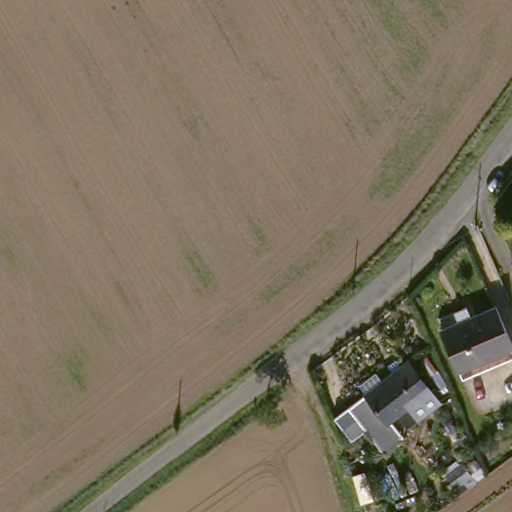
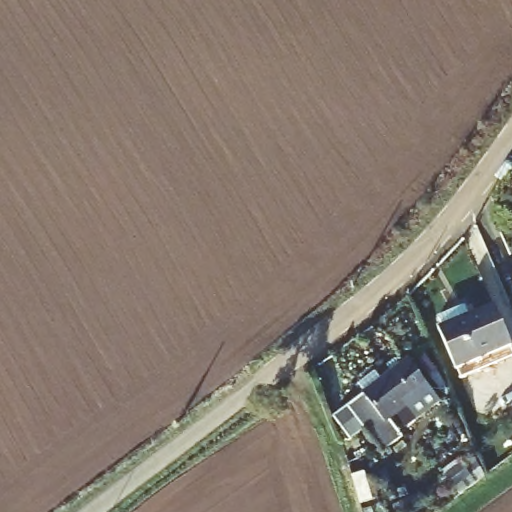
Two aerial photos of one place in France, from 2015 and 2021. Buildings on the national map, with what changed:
unchanged [(443,332),(495,312),(512,351),(512,363),(464,382),(443,332)]
unchanged [(406,437),(389,451),(369,424),(359,407),(400,375),(393,368),(404,359),(409,367),(417,362),(434,389),(442,399),(421,416),(413,406),(394,421),(406,437)]

